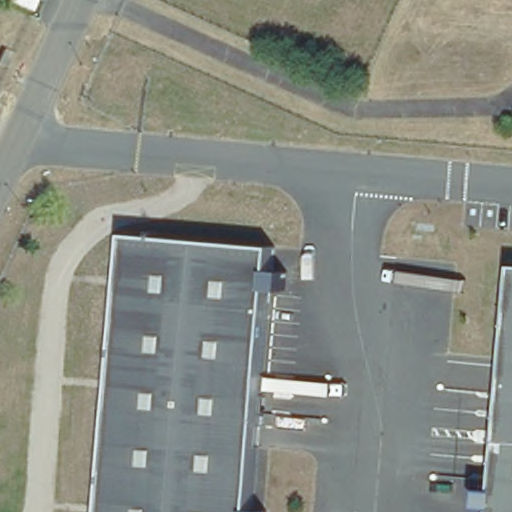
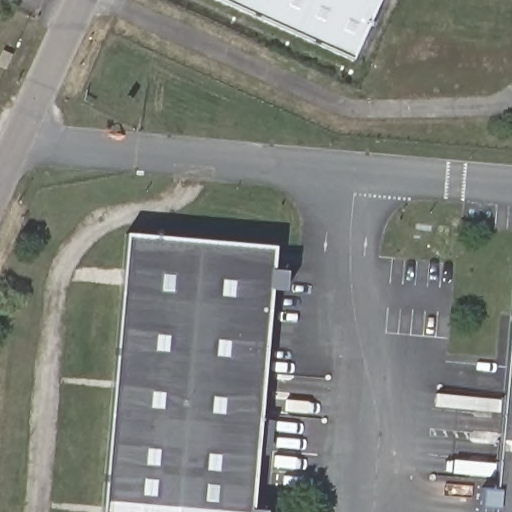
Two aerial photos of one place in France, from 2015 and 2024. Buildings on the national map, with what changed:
new [(352,60),(221,0),(380,0),(352,60)]
unchanged [(207,376),(115,368),(120,300),(126,231),(276,243),(275,259),(270,313),(264,381),(207,376)]
unchanged [(512,443),(501,442),(512,293),(512,443)]
unchanged [(207,376),(197,512),(102,512),(115,368),(207,376)]
unchanged [(197,512),(207,376),(264,381),(253,512),(197,512)]
unchanged [(512,443),(512,512),(495,512),(501,442),(512,443)]

